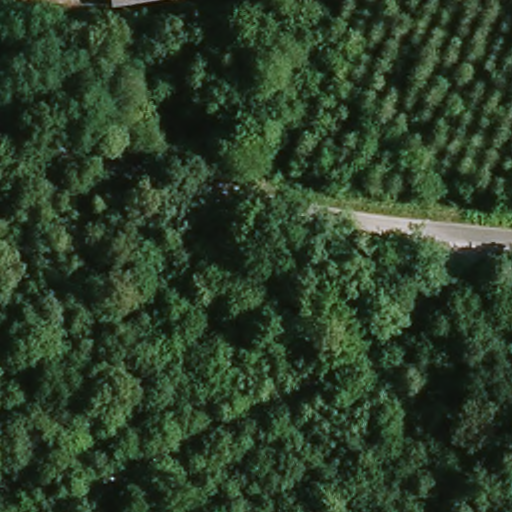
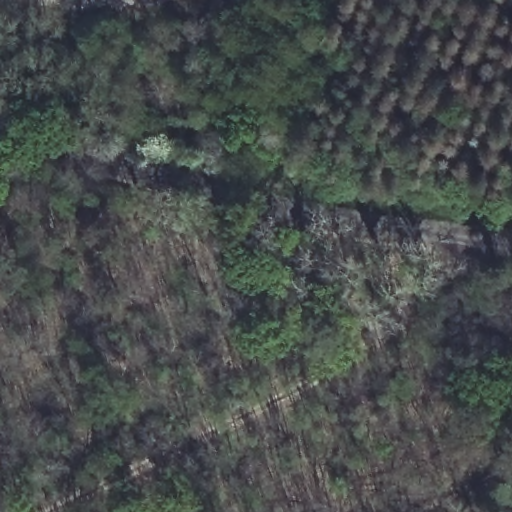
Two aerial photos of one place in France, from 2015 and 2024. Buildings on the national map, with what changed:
unchanged [(169,0),(117,10),(116,0),(169,0)]

